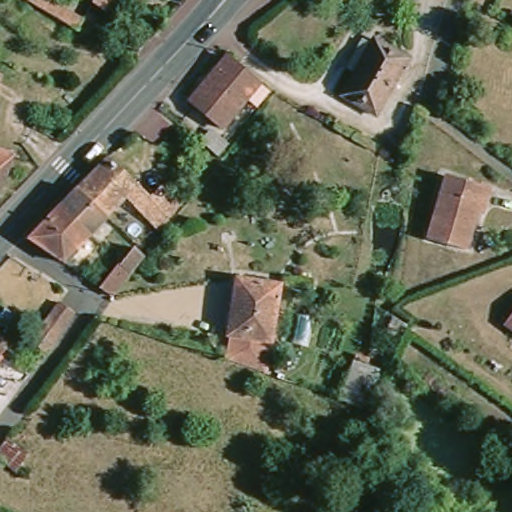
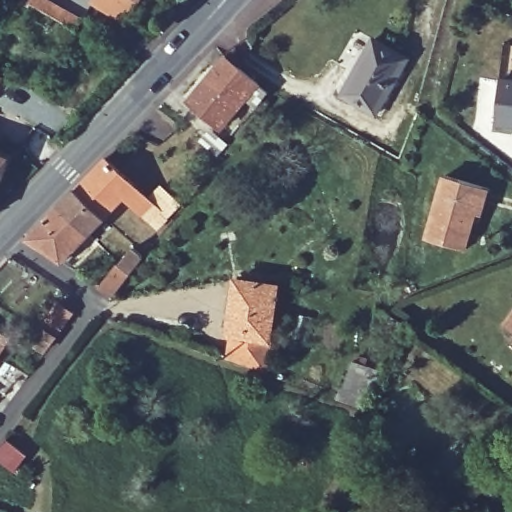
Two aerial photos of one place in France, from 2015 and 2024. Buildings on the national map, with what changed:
unchanged [(77,24),(33,0),(56,0),(82,15),(77,24)]
unchanged [(127,0),(116,16),(100,5),(103,0),(127,0)]
unchanged [(407,56),(372,113),(339,92),(373,35),(407,56)]
unchanged [(257,85),(218,130),(189,102),(227,59),(257,85)]
new [(495,84),(512,85),(512,129),(492,127),(495,84)]
unchanged [(165,217),(156,229),(121,194),(102,214),(72,185),(102,154),(165,217)]
unchanged [(0,179),(0,156),(9,160),(0,179)]
unchanged [(443,175),(487,186),(478,221),(470,220),(462,250),(427,241),(443,175)]
unchanged [(55,203),(72,185),(102,214),(85,231),(55,203)]
unchanged [(25,235),(55,203),(85,231),(59,259),(25,235)]
unchanged [(144,257),(111,299),(100,290),(134,250),(144,257)]
unchanged [(262,370),(226,357),(233,335),(228,333),(240,276),(280,284),(262,370)]
unchanged [(497,320),(512,301),(512,332),(497,320)]
unchanged [(42,327),(59,303),(74,312),(56,337),(48,350),(32,338),(36,329),(38,325),(42,327)]
unchanged [(8,340),(0,352),(0,333),(5,336),(8,340)]
unchanged [(371,365),(366,393),(360,408),(341,401),(355,362),(371,365)]
unchanged [(0,459),(0,449),(7,440),(26,455),(15,470),(0,459)]

